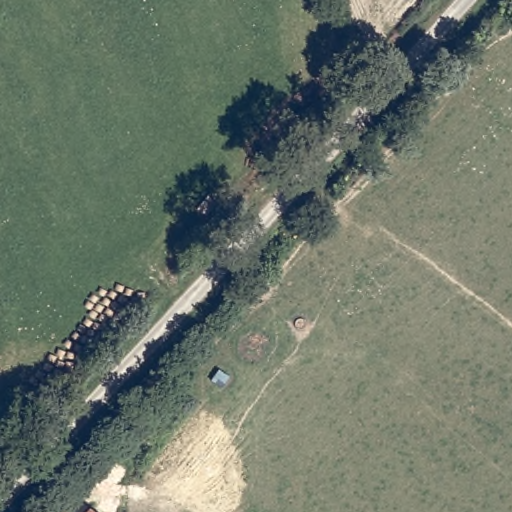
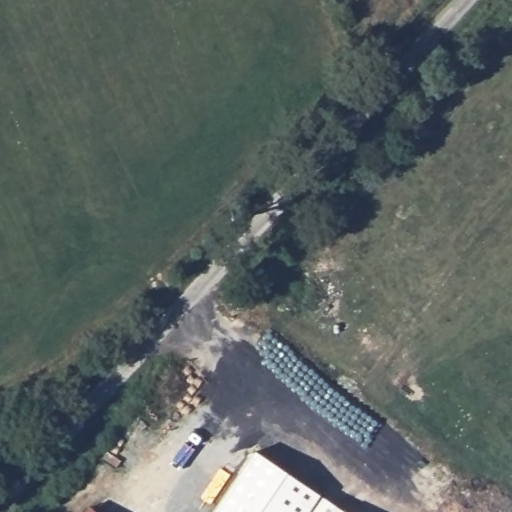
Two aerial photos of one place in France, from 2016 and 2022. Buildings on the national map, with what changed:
new [(320,495),(308,512),(213,512),(255,450),(320,495)]
unchanged [(87,512),(80,512),(83,508),(87,512)]
new [(345,512),(337,512),(340,508),(345,512)]

